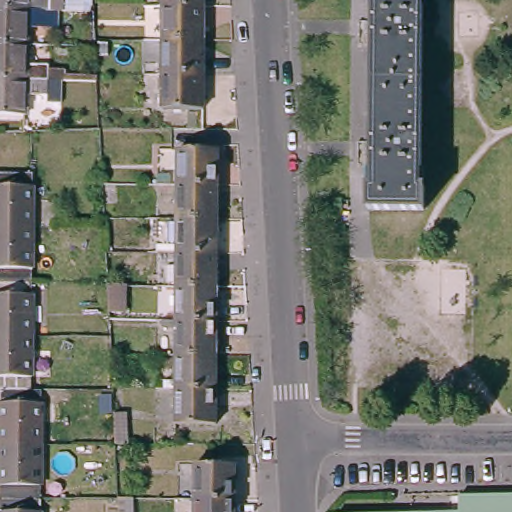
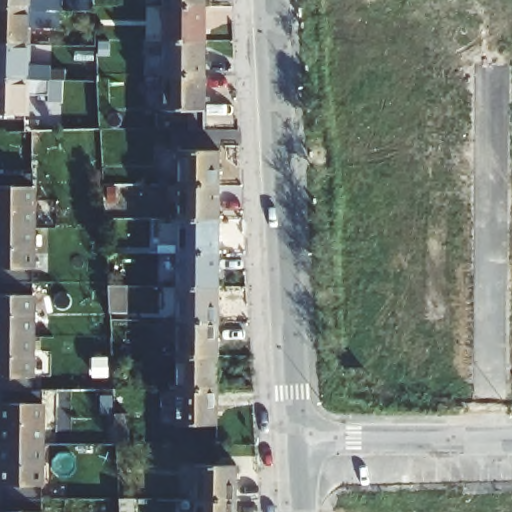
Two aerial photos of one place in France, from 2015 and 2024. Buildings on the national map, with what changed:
unchanged [(55,11),(0,12),(0,0),(55,0),(55,11)]
unchanged [(159,0),(200,0),(200,33),(159,33),(159,0)]
demolished [(421,183),(425,184),(425,207),(370,206),(370,183),(373,184),(374,0),(423,0),(421,183)]
unchanged [(55,11),(55,28),(31,27),(31,47),(0,47),(0,12),(55,11)]
unchanged [(159,33),(200,33),(200,67),(159,68),(159,33)]
unchanged [(31,47),(31,67),(51,68),(52,80),(0,80),(0,47),(31,47)]
unchanged [(200,67),(201,103),(159,104),(159,68),(200,67)]
unchanged [(52,80),(52,95),(30,96),(28,115),(0,116),(0,80),(52,80)]
unchanged [(183,178),(185,141),(225,145),(223,177),(183,178)]
unchanged [(32,392),(44,393),(43,512),(0,512),(0,172),(35,172),(32,392)]
unchanged [(183,178),(223,177),(222,215),(182,216),(183,178)]
unchanged [(222,215),(221,253),(181,253),(182,216),(222,215)]
unchanged [(220,285),(180,285),(181,253),(221,253),(220,285)]
unchanged [(126,312),(110,313),(110,285),(125,285),(126,312)]
unchanged [(179,318),(180,285),(220,285),(219,318),(179,318)]
unchanged [(218,350),(178,351),(179,318),(219,318),(218,350)]
unchanged [(217,390),(176,390),(178,351),(218,350),(217,390)]
unchanged [(216,426),(175,424),(176,390),(217,390),(216,426)]
unchanged [(116,415),(135,416),(135,443),(117,443),(116,415)]
unchanged [(202,497),(203,459),(239,460),(237,497),(202,497)]
demolished [(460,488),(512,487),(512,512),(336,512),(335,508),(460,505),(460,488)]
unchanged [(237,497),(237,512),(201,512),(202,497),(237,497)]
unchanged [(132,512),(120,512),(120,501),(132,501),(132,512)]

